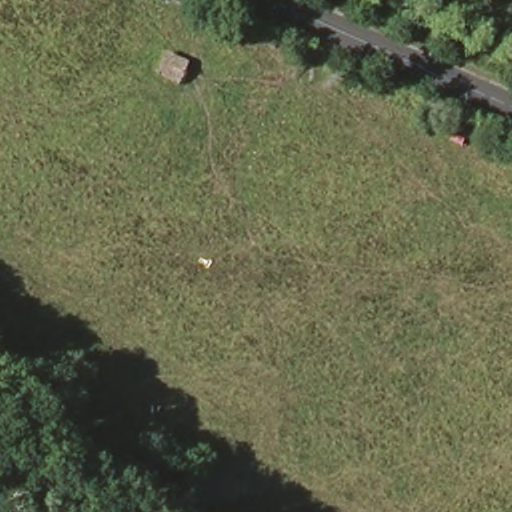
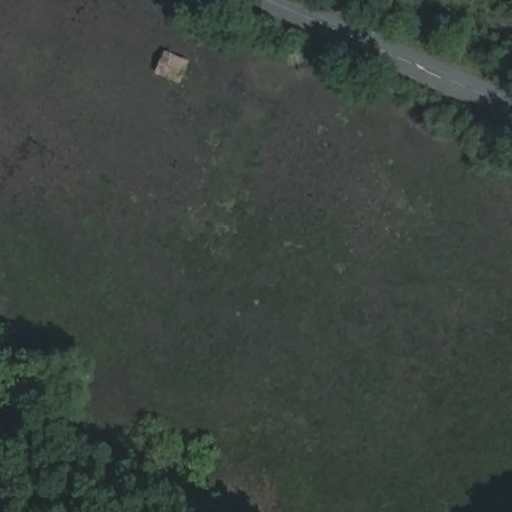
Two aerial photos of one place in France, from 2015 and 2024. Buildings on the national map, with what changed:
unchanged [(164,51),(187,61),(179,85),(154,76),(164,51)]

